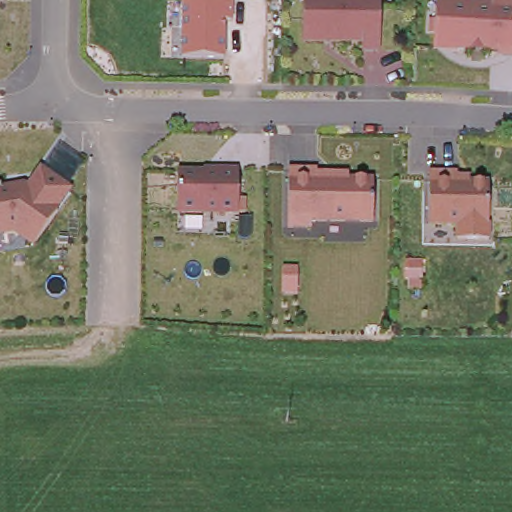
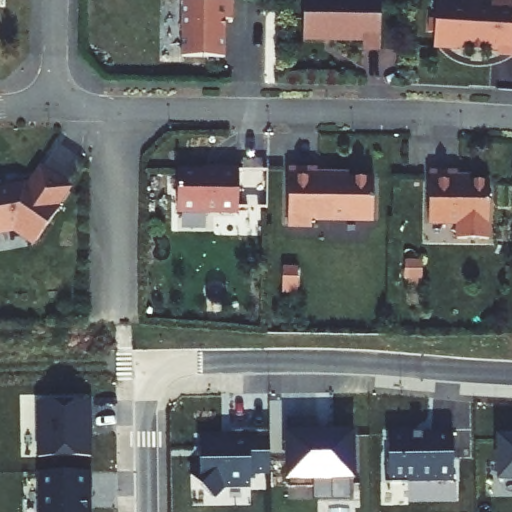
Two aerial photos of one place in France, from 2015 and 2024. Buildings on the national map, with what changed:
unchanged [(360,51),(360,45),(301,43),(301,0),(380,0),(378,51),(360,51)]
unchanged [(489,0),(512,0),(512,59),(495,59),(495,54),(432,49),(435,0),(489,1),(489,0)]
unchanged [(232,1),(232,21),(223,24),(224,61),(179,59),(179,1),(232,1)]
unchanged [(39,165),(71,187),(32,247),(12,234),(0,236),(0,186),(25,183),(39,165)]
unchanged [(237,168),(236,217),(175,216),(177,168),(237,168)]
unchanged [(315,169),(315,172),(347,173),(347,177),(372,177),(372,224),(310,224),(310,229),(285,229),(287,168),(315,169)]
unchanged [(457,170),(457,175),(489,179),(487,241),(454,240),(454,228),(427,226),(427,170),(457,170)]
unchanged [(402,258),(417,258),(417,278),(402,278),(402,258)]
unchanged [(277,265),(292,266),(292,291),(277,291),(277,265)]
new [(40,404),(92,404),(94,458),(42,459),(40,404)]
new [(315,418),(315,434),(355,433),(354,479),(312,479),(312,487),(289,487),(286,480),(285,432),(287,419),(315,418)]
new [(272,473),(252,473),(253,487),(225,487),(215,498),(194,478),(202,468),(202,440),(225,440),(225,442),(232,442),(232,432),(272,432),(272,473)]
new [(435,483),(435,480),(412,480),(412,484),(390,484),(390,460),(392,460),(392,436),(435,436),(435,432),(456,433),(457,483),(435,483)]
new [(500,481),(500,438),(512,438),(512,480),(500,481)]
new [(92,474),(92,494),(89,494),(89,512),(45,512),(44,474),(92,474)]

